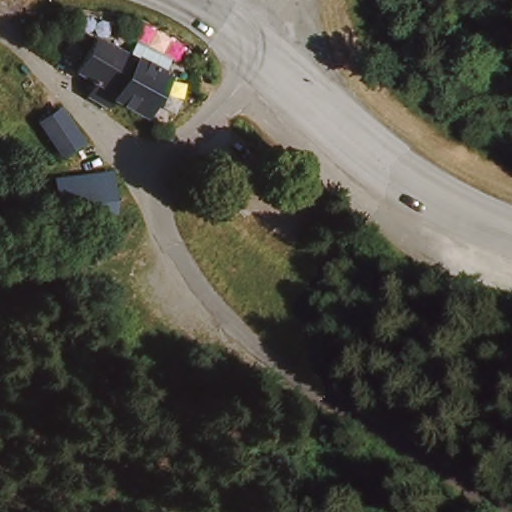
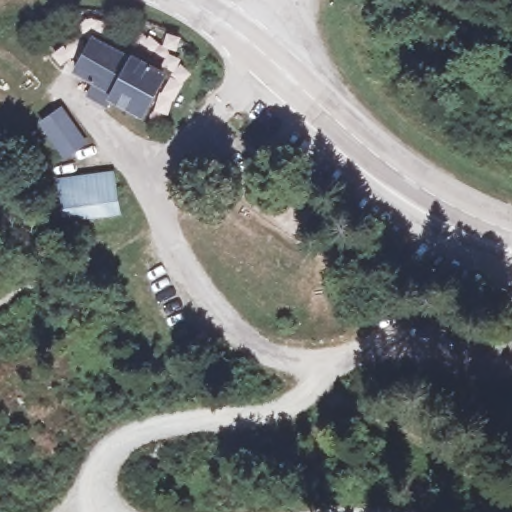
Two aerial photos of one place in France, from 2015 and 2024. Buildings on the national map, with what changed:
unchanged [(167,75),(145,119),(125,110),(130,99),(105,87),(99,96),(90,92),(93,87),(75,77),(93,37),(167,75)]
unchanged [(42,120),(64,111),(72,122),(85,145),(65,156),(61,150),(42,120)]
unchanged [(63,181),(115,184),(115,205),(66,205),(63,181)]

